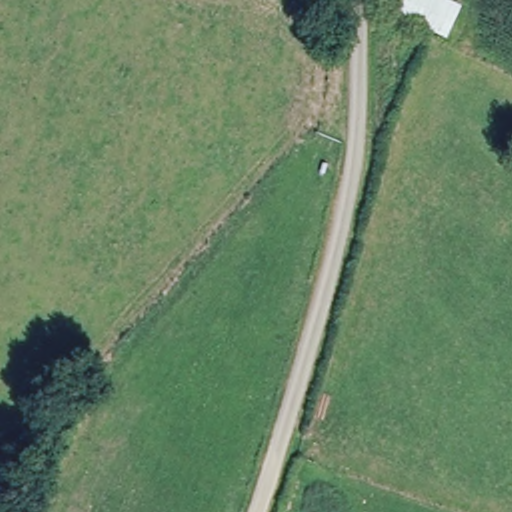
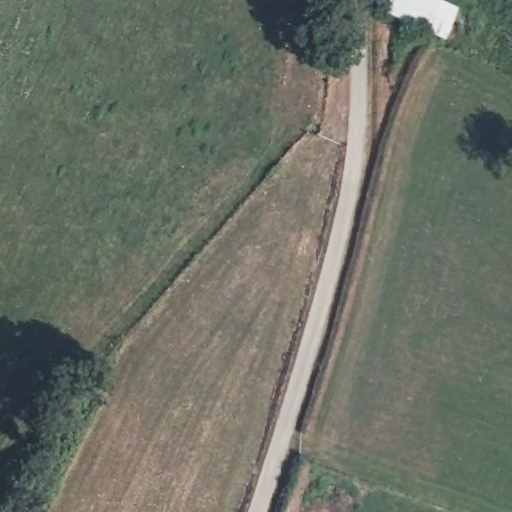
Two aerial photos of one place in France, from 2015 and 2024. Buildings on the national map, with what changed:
unchanged [(449,49),(381,15),(389,0),(455,0),(470,6),(449,49)]

